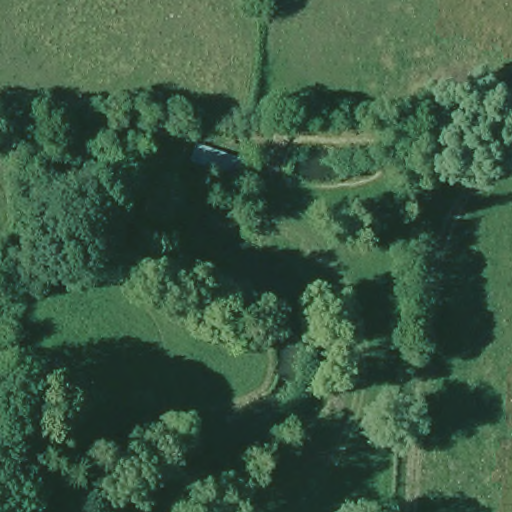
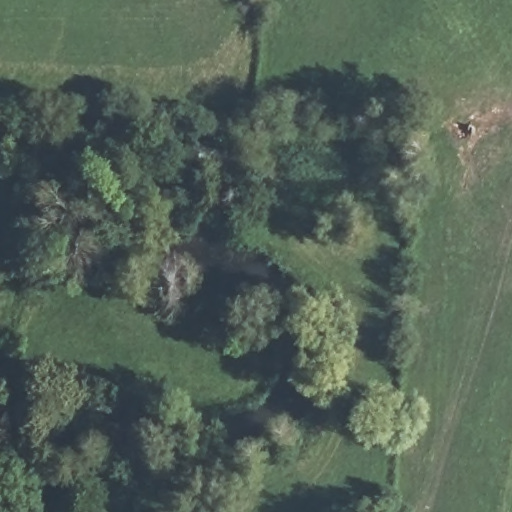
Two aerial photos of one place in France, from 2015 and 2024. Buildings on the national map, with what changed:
unchanged [(242,160),(236,185),(182,169),(190,144),(242,160)]

